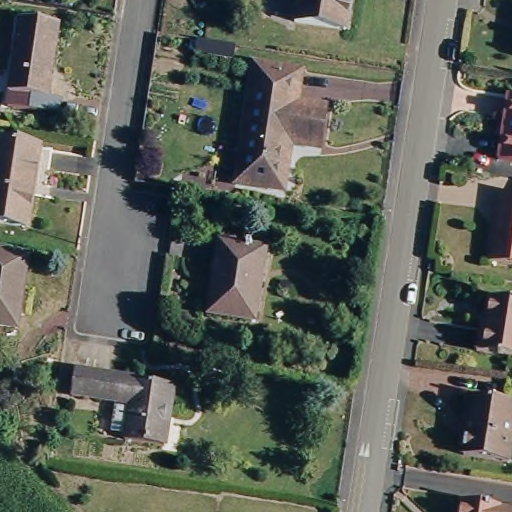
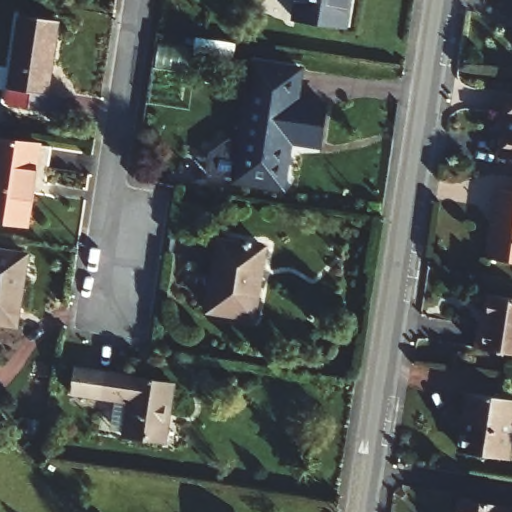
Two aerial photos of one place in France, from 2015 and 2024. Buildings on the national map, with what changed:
unchanged [(58,97),(35,94),(5,89),(19,0),(40,0),(57,3),(46,77),(61,80),(58,97)]
unchanged [(302,0),(352,0),(349,22),(300,14),(302,0)]
unchanged [(300,98),(327,99),(320,148),(292,145),(282,191),(235,182),(253,61),(303,68),(300,98)]
unchanged [(512,93),(512,157),(499,156),(508,92),(512,93)]
unchanged [(43,148),(32,221),(0,216),(0,141),(43,148)]
unchanged [(493,194),(512,197),(512,267),(483,263),(493,194)]
unchanged [(220,242),(262,249),(252,319),(209,312),(220,242)]
unchanged [(30,252),(20,321),(0,318),(0,247),(30,252)]
unchanged [(482,324),(487,294),(512,297),(512,352),(475,346),(478,324),(482,324)]
unchanged [(80,364),(125,369),(124,373),(177,380),(169,439),(116,432),(121,396),(75,389),(80,364)]
unchanged [(465,412),(468,392),(512,398),(512,422),(507,458),(462,451),(467,412),(465,412)]
unchanged [(512,508),(511,512),(458,512),(460,501),(512,508)]

